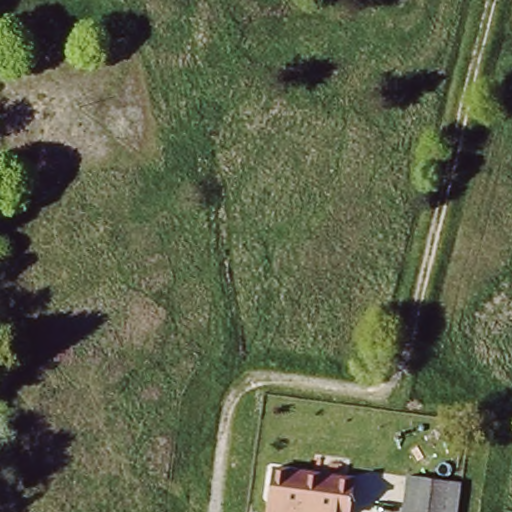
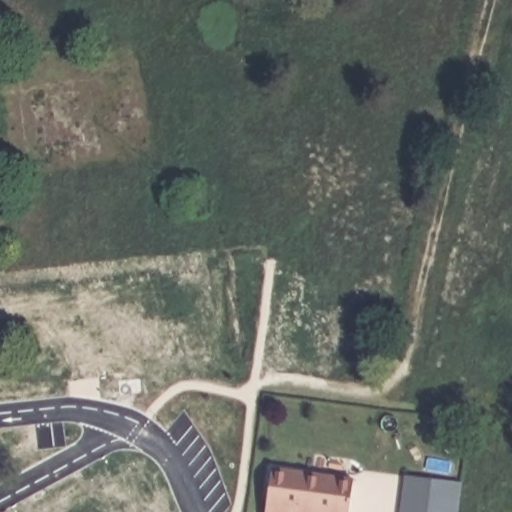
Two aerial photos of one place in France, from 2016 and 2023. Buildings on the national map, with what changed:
unchanged [(343,475),(339,512),(257,512),(260,471),(343,475)]
unchanged [(463,477),(458,512),(400,512),(409,472),(463,477)]

